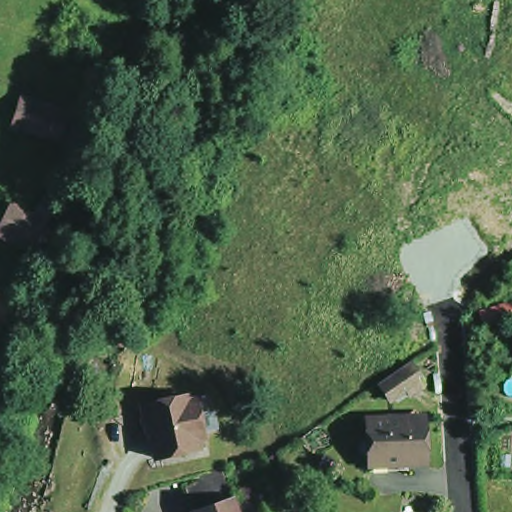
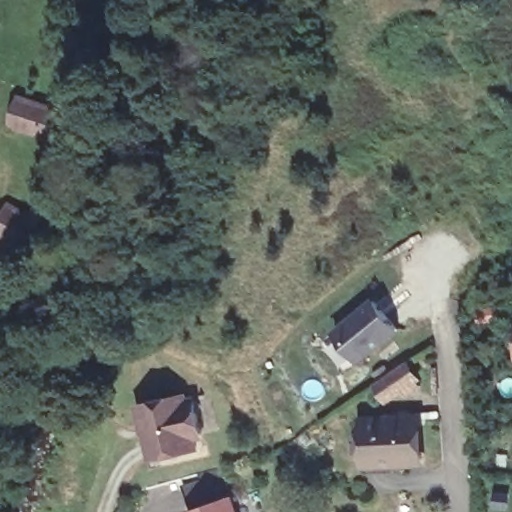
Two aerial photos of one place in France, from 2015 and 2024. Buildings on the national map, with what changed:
unchanged [(80,147),(65,141),(18,126),(27,99),(73,115),(70,126),(85,130),(80,147)]
unchanged [(45,246),(0,225),(15,196),(38,208),(47,189),(67,198),(45,246)]
new [(375,301),(399,330),(361,360),(348,371),(325,343),(338,332),(375,301)]
new [(512,306),(512,317),(481,326),(477,312),(511,302),(512,306)]
unchanged [(420,386),(406,393),(403,390),(387,400),(376,385),(409,363),(420,378),(416,381),(420,386)]
unchanged [(141,409),(184,398),(185,401),(193,400),(200,435),(193,438),(196,451),(153,461),(141,409)]
unchanged [(368,467),(367,456),(365,415),(417,413),(420,460),(397,460),(397,466),(368,467)]
unchanged [(183,492),(220,478),(231,508),(219,512),(191,512),(183,492)]
unchanged [(231,508),(233,512),(219,512),(231,508)]

